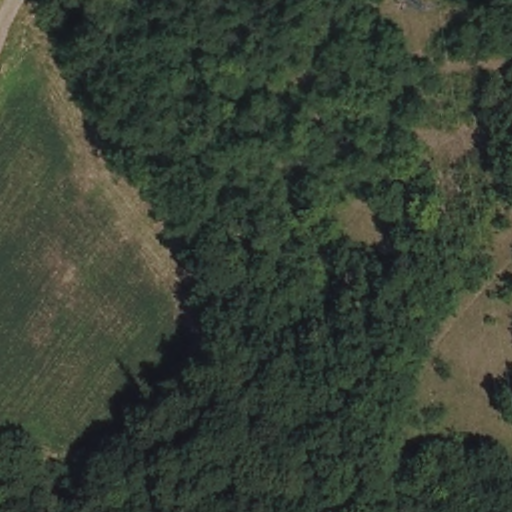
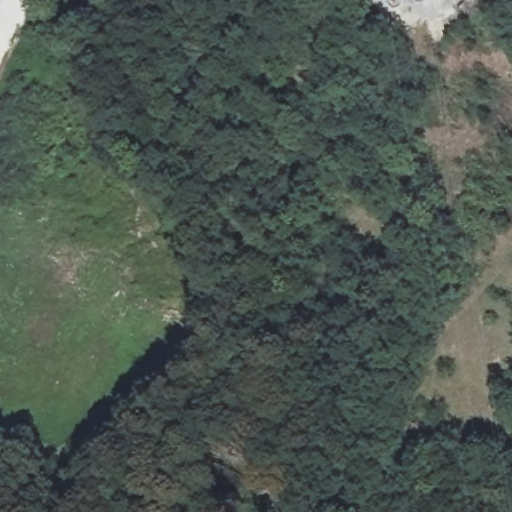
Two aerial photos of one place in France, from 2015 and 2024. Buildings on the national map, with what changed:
[]

